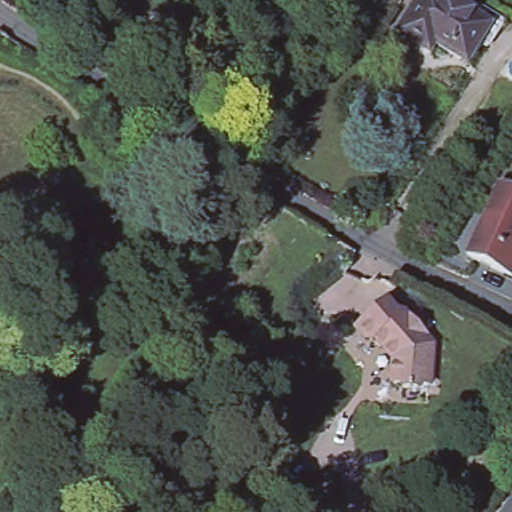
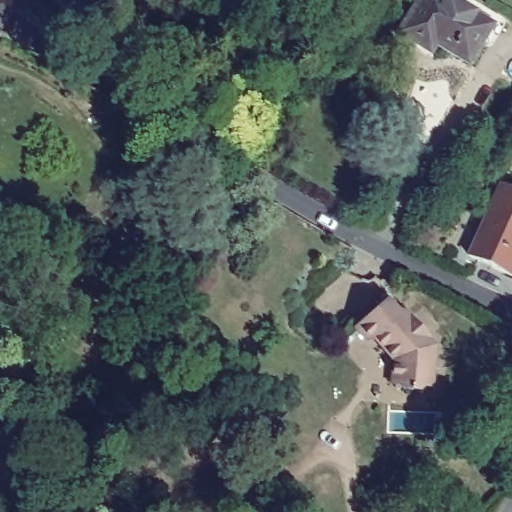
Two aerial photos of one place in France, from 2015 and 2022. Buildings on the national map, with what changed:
unchanged [(453,0),(494,24),(469,65),(422,37),(417,45),(399,34),(419,0),(453,0)]
unchanged [(512,194),(512,229),(487,217),(500,188),(512,194)]
unchanged [(469,257),(487,217),(512,229),(512,257),(504,274),(479,262),(469,257)]
unchanged [(512,257),(512,277),(504,274),(512,257)]
unchanged [(400,355),(382,334),(372,335),(362,324),(392,298),(404,311),(410,308),(439,343),(437,381),(429,381),(425,386),(409,386),(405,379),(397,378),(400,355)]

